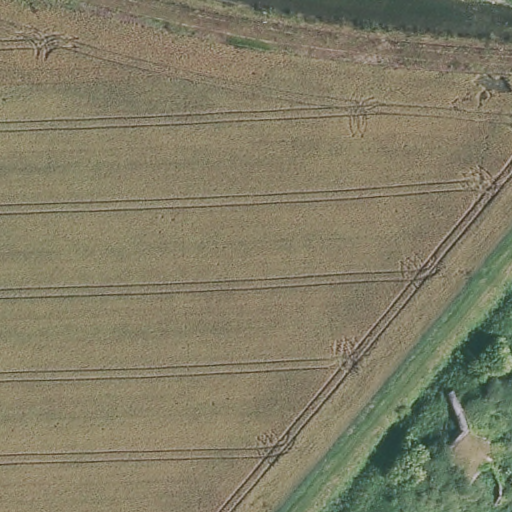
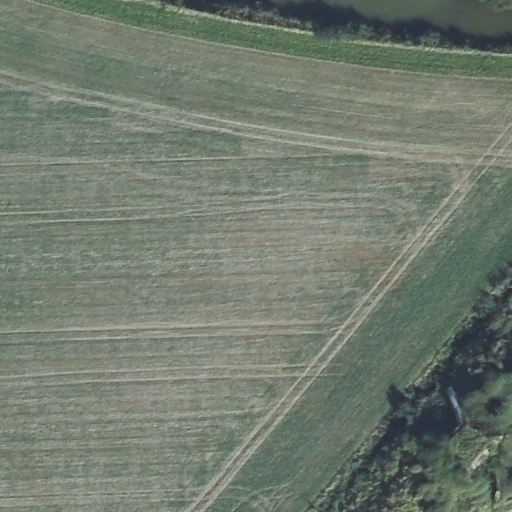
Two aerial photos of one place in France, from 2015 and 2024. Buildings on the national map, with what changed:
unchanged [(480,429),(485,433),(487,437),(506,436),(466,481),(446,463),(452,457),(450,451),(445,444),(461,430),(445,396),(453,392),(471,429),(478,429),(480,429)]

